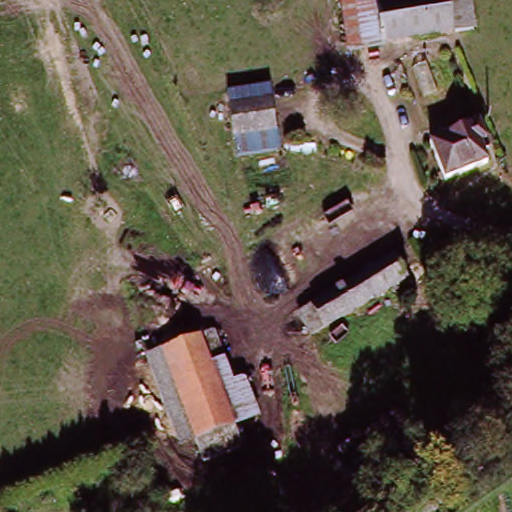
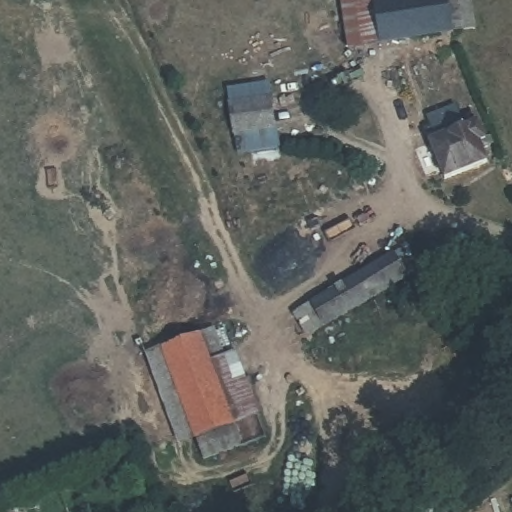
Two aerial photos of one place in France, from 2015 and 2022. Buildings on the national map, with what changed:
unchanged [(337,3),(355,0),(373,0),(374,5),(408,0),(471,0),(475,33),(346,51),(337,3)]
unchanged [(277,126),(237,136),(230,108),(270,97),(277,126)]
unchanged [(480,168),(442,183),(426,142),(473,124),(483,151),(475,154),(480,168)]
unchanged [(307,301),(382,256),(400,285),(325,331),(307,301)]
unchanged [(140,356),(214,330),(237,381),(248,376),(262,418),(237,428),(244,451),(199,461),(195,441),(174,451),(140,356)]

